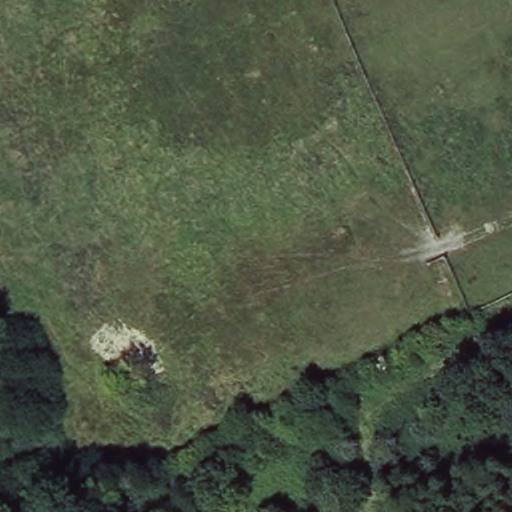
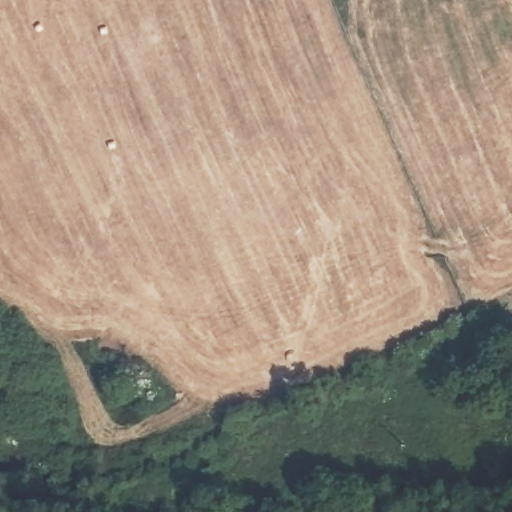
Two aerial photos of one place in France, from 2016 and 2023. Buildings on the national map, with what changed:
[]

